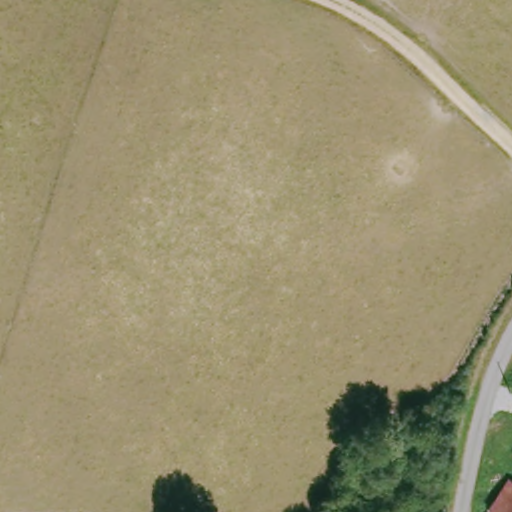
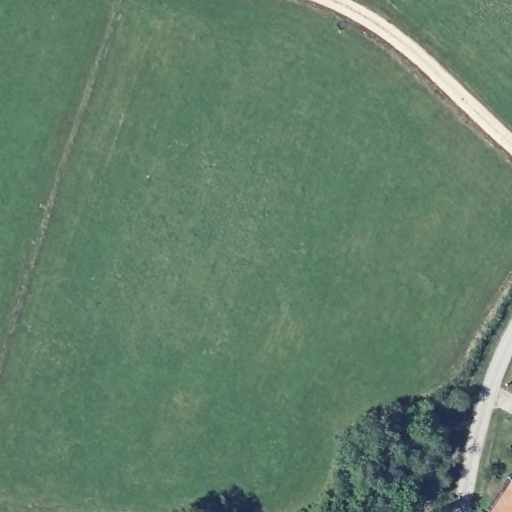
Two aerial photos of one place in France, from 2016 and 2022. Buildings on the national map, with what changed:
unchanged [(507,457),(512,449),(512,461),(507,457)]
unchanged [(504,474),(512,481),(512,512),(491,512),(484,506),(504,474)]

